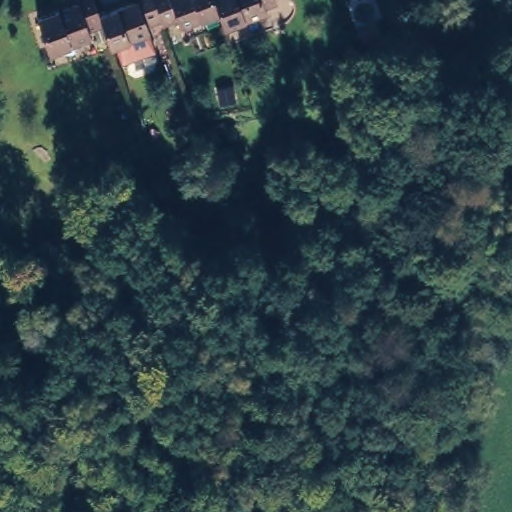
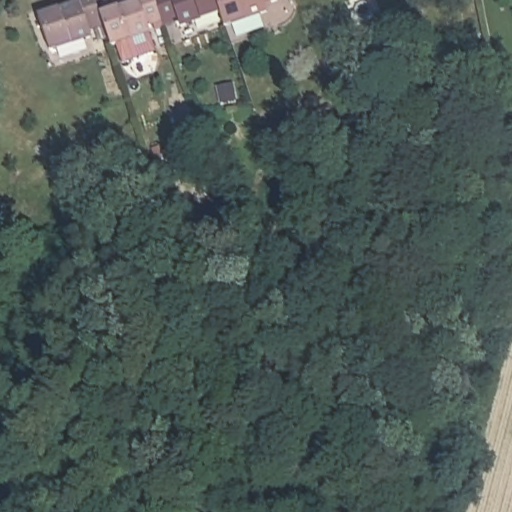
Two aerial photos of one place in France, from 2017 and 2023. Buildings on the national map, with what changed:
unchanged [(103,25),(88,30),(91,36),(50,51),(38,17),(79,4),(78,0),(95,0),(100,16),(103,25)]
unchanged [(147,25),(149,32),(110,46),(103,25),(100,16),(137,2),(137,0),(153,0),(160,20),(147,25)]
unchanged [(180,26),(177,19),(162,24),(160,20),(153,0),(214,0),(218,12),(180,26)]
unchanged [(265,11),(223,27),(218,12),(214,0),(275,0),(263,4),(265,11)]
unchanged [(338,52),(342,60),(330,66),(326,58),(338,52)]

